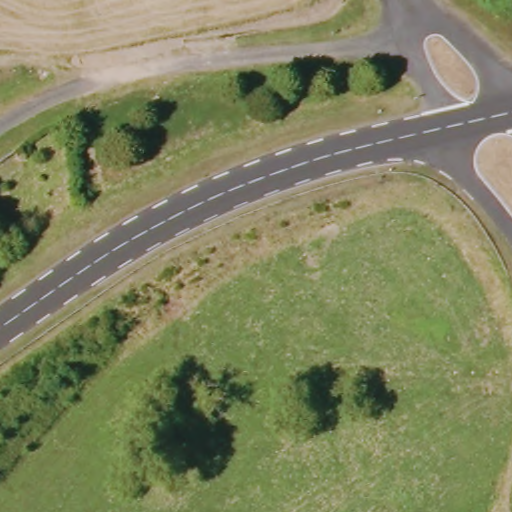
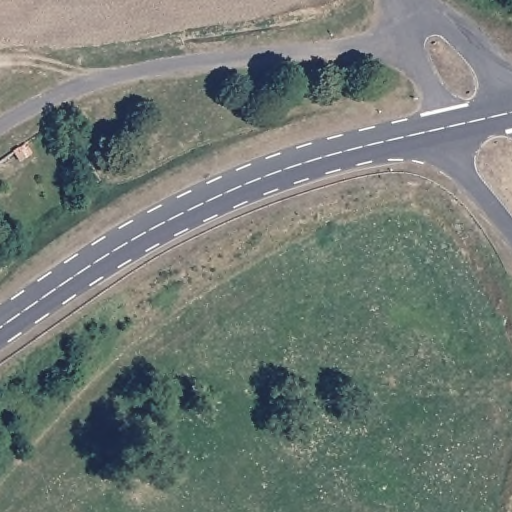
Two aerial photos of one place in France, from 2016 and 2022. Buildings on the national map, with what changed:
[]

